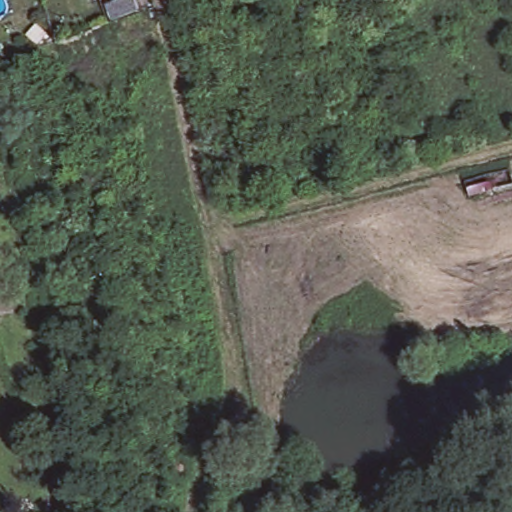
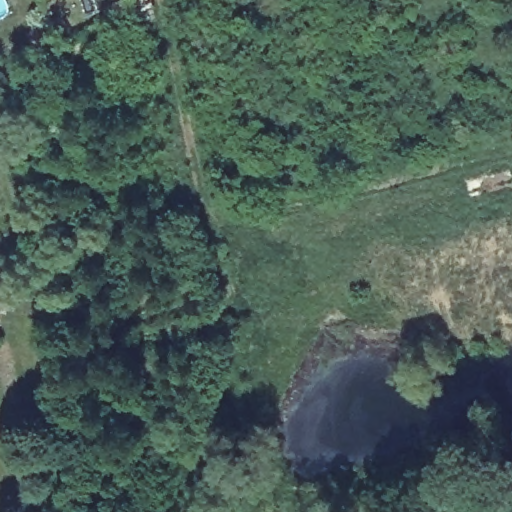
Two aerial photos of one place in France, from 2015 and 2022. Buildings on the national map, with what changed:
unchanged [(135,0),(140,12),(115,20),(109,4),(120,0),(135,0)]

